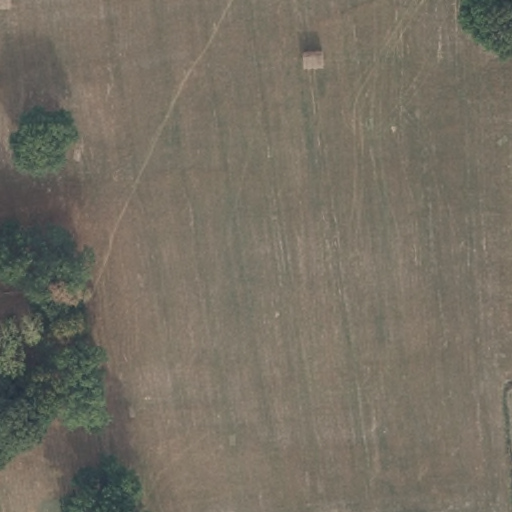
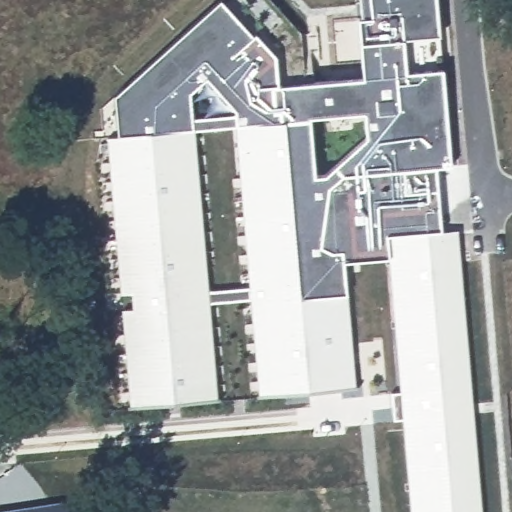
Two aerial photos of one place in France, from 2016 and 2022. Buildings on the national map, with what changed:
new [(393,422),(390,393),(399,391),(386,257),(343,261),(354,387),(257,395),(250,299),(209,302),(218,400),(128,407),(121,309),(132,307),(130,296),(119,297),(106,136),(119,135),(114,94),(219,0),(220,0),(269,0),(299,33),(298,82),(363,77),(358,17),(361,17),(360,0),(436,0),(451,167),(437,168),(442,229),(456,228),(482,512),(411,512),(402,422),(393,422)]

